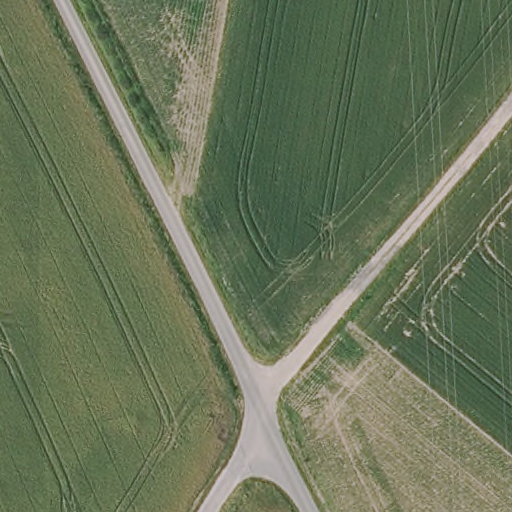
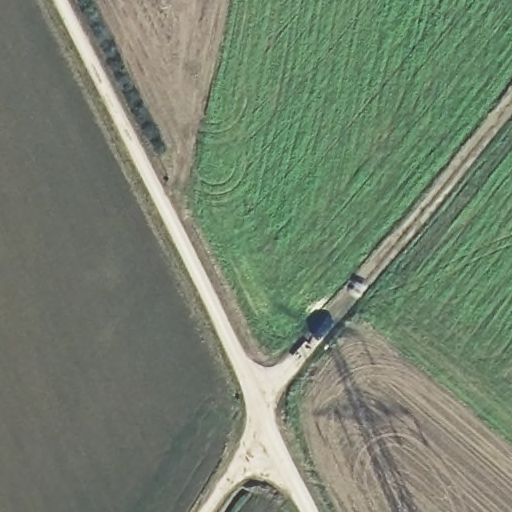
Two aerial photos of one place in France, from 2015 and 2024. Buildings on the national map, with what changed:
[]

